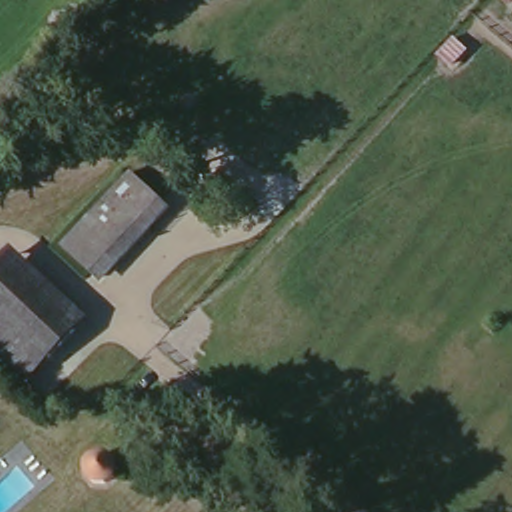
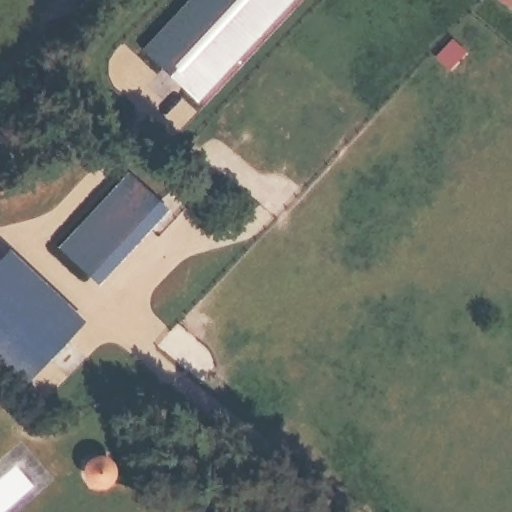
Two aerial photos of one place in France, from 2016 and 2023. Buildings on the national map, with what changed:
new [(145,46),(188,0),(295,0),(208,99),(145,46)]
new [(503,0),(512,0),(512,5),(511,7),(503,0)]
new [(434,54),(452,34),(469,51),(451,70),(434,54)]
unchanged [(64,244),(136,171),(174,209),(103,282),(64,244)]
unchanged [(0,265),(15,250),(86,322),(48,362),(0,314),(0,265)]
unchanged [(0,314),(48,362),(25,383),(0,358),(0,314)]
unchanged [(108,490),(98,491),(88,486),(83,479),(82,471),(85,464),(92,458),(100,457),(109,458),(115,466),(116,475),(108,490)]

